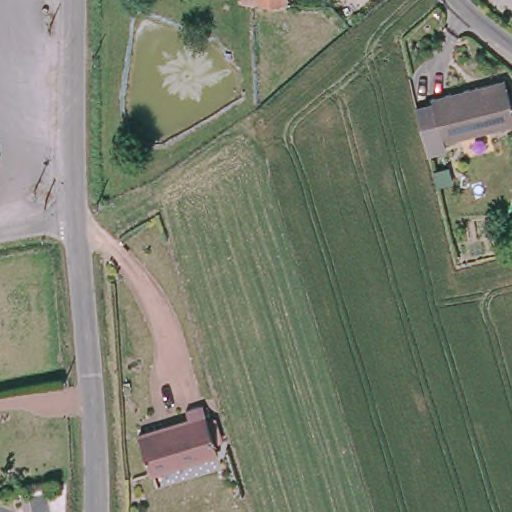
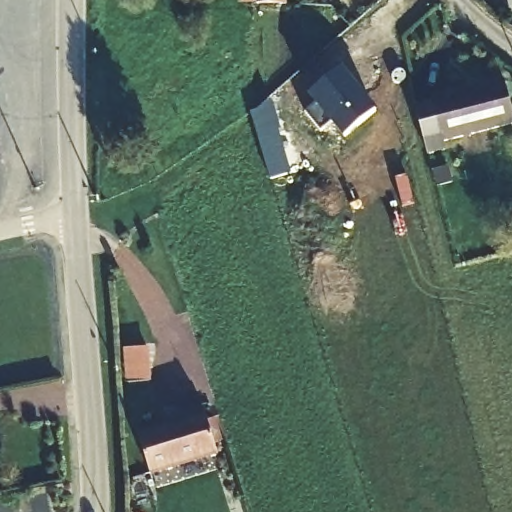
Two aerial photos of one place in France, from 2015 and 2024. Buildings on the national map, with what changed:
unchanged [(257,6),(257,0),(286,0),(286,6),(257,6)]
new [(342,68),(377,109),(343,138),(330,121),(321,130),(306,111),(317,104),(310,95),(342,68)]
unchanged [(504,78),(512,113),(512,127),(442,144),(432,95),(504,78)]
new [(273,101),(280,129),(278,131),(290,173),(270,180),(252,112),(257,111),(269,99),(273,101)]
unchanged [(442,144),(447,143),(448,150),(428,155),(417,106),(433,101),(442,144)]
unchanged [(192,422),(189,412),(205,407),(218,454),(151,474),(140,438),(192,422)]

